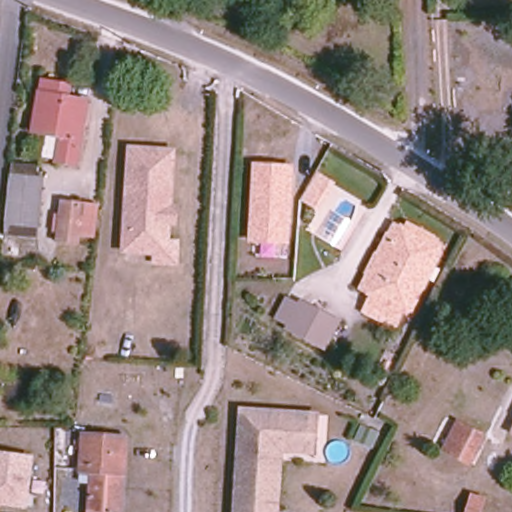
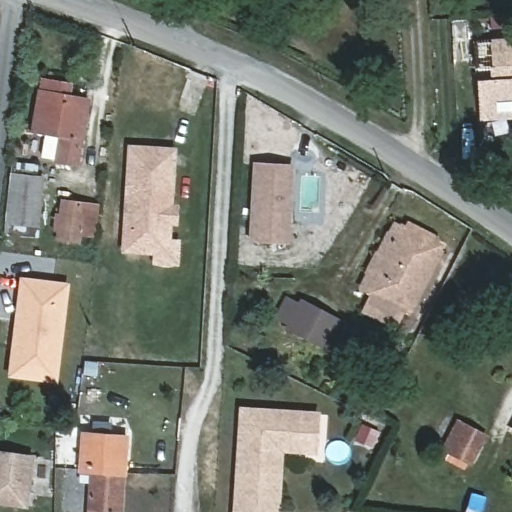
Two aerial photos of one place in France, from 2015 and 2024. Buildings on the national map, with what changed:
new [(476,79),(479,79),(475,43),(487,43),(487,39),(512,37),(512,118),(479,120),(476,79)]
unchanged [(91,103),(79,166),(47,160),(51,134),(37,131),(44,94),(91,103)]
unchanged [(177,267),(151,266),(152,255),(124,253),(129,150),(173,153),(168,241),(178,241),(177,267)]
unchanged [(295,166),(291,241),(255,239),(259,164),(295,166)]
unchanged [(39,236),(9,234),(14,177),(15,166),(37,168),(36,179),(43,180),(39,236)]
unchanged [(332,181),(317,208),(305,201),(320,175),(332,181)]
unchanged [(82,235),(81,244),(60,242),(61,232),(57,232),(59,215),(64,216),(65,203),(85,205),(101,207),(100,213),(97,237),(82,235)]
unchanged [(366,311),(375,294),(372,292),(363,288),(388,234),(397,239),(401,229),(441,248),(411,312),(405,309),(397,327),(366,311)]
new [(55,381),(7,377),(19,277),(67,285),(55,381)]
unchanged [(336,321),(324,346),(292,331),(304,305),(336,321)]
unchanged [(239,412),(314,417),(312,454),(278,452),(271,451),(261,460),(258,510),(233,509),(239,412)]
unchanged [(457,420),(489,437),(474,467),(444,449),(457,420)]
unchanged [(124,507),(118,507),(118,512),(93,512),(94,469),(84,468),(86,433),(127,435),(124,507)]
unchanged [(27,509),(0,505),(0,450),(34,455),(27,509)]
unchanged [(275,512),(233,512),(233,509),(258,510),(261,460),(271,451),(278,452),(275,512)]
unchanged [(480,500),(479,504),(478,512),(466,512),(469,497),(480,500)]
demolished [(21,512),(21,510),(40,511),(40,512),(21,512)]

